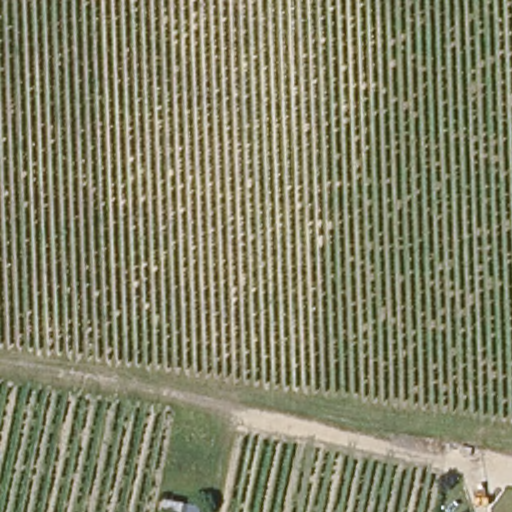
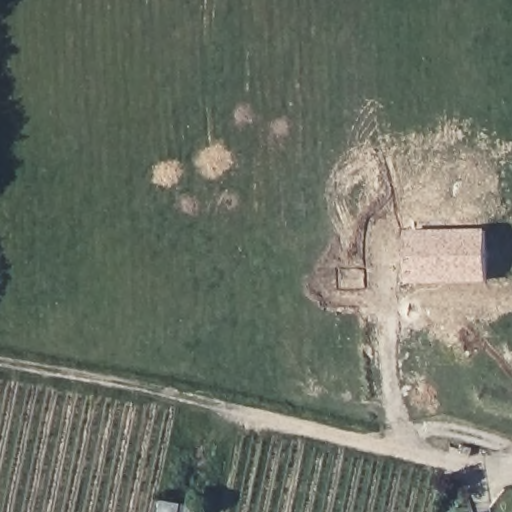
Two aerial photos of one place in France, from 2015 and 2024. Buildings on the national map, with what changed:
new [(406,284),(405,230),(485,228),(486,282),(406,284)]

